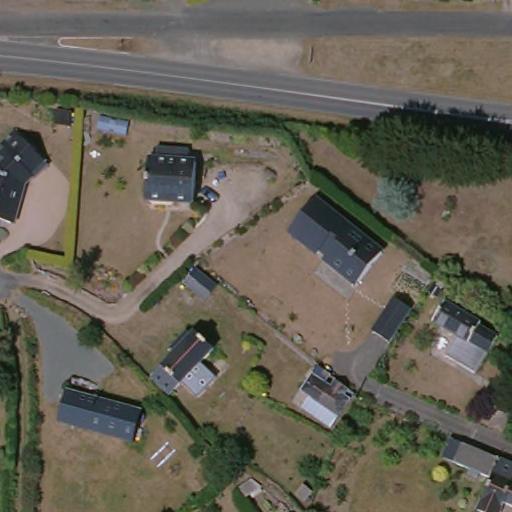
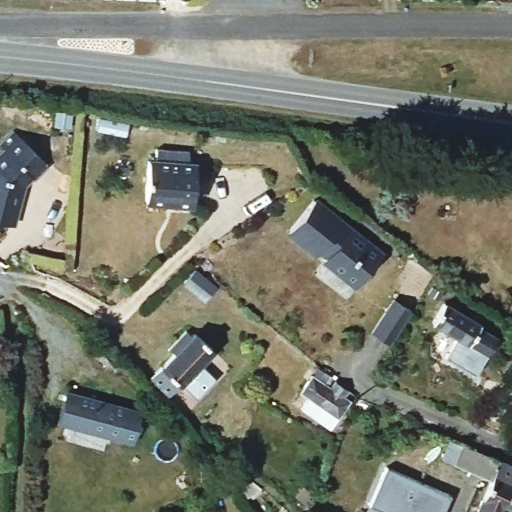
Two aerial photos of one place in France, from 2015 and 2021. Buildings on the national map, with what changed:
unchanged [(23,180),(19,176),(13,182),(4,225),(0,224),(0,133),(2,131),(36,165),(23,180)]
unchanged [(149,202),(151,161),(158,161),(158,148),(191,150),(191,162),(197,163),(196,204),(149,202)]
unchanged [(366,288),(316,247),(321,241),(316,237),(311,242),(286,221),(311,189),(391,256),(366,288)]
new [(191,268),(212,284),(200,299),(180,283),(191,268)]
unchanged [(373,329),(394,294),(411,305),(390,340),(373,329)]
unchanged [(485,317),(484,319),(501,330),(480,368),(450,350),(461,329),(438,315),(449,295),(485,317)]
unchanged [(167,356),(186,334),(188,335),(191,339),(196,334),(214,351),(174,397),(156,381),(173,361),(167,356)]
unchanged [(347,395),(330,424),(300,406),(307,395),(299,389),(308,373),(326,383),(331,376),(344,386),(341,391),(347,395)]
unchanged [(139,420),(135,453),(58,442),(62,410),(139,420)]
unchanged [(478,485),(475,491),(464,486),(467,480),(441,468),(449,447),(512,476),(512,484),(501,512),(475,512),(486,488),(478,485)]
new [(389,467),(453,497),(445,512),(385,512),(371,506),(389,467)]
unchanged [(512,484),(512,512),(501,512),(512,484)]

